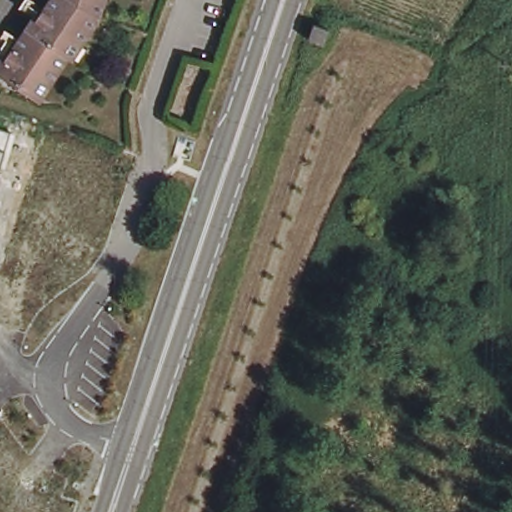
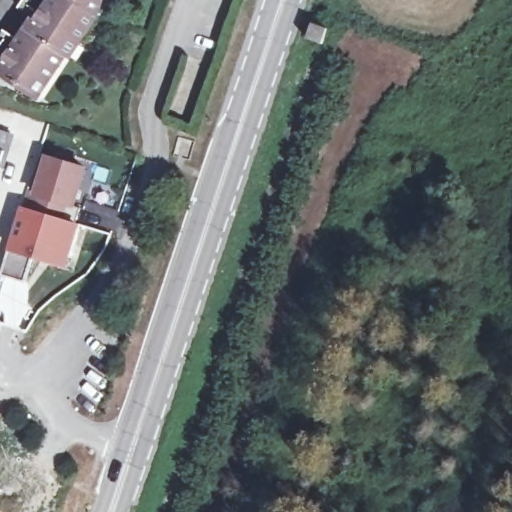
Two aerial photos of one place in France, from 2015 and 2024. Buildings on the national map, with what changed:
unchanged [(102,15),(74,57),(70,55),(42,96),(0,68),(0,64),(7,55),(11,57),(15,51),(30,28),(39,15),(42,17),(50,6),(54,0),(106,0),(102,15)]
unchanged [(313,22),(315,23),(327,28),(323,42),(312,39),(307,37),(313,22)]
unchanged [(0,167),(0,129),(9,132),(0,167)]
new [(48,157),(85,169),(75,205),(67,203),(63,218),(32,209),(48,157)]
new [(11,244),(23,206),(32,209),(63,218),(76,222),(67,252),(45,246),(43,254),(35,251),(25,281),(2,274),(11,244)]

